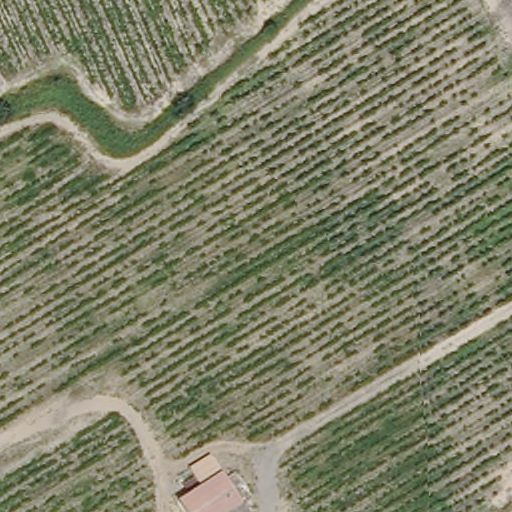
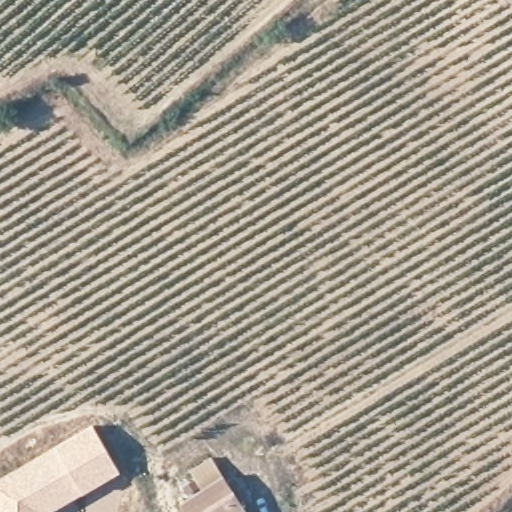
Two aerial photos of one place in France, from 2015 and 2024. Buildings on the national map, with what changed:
new [(92,423),(120,472),(51,512),(0,512),(0,476),(92,423)]
unchanged [(224,483),(244,512),(184,512),(182,509),(224,483)]

